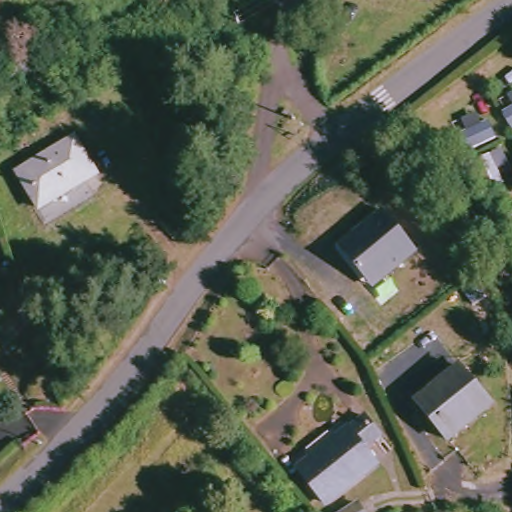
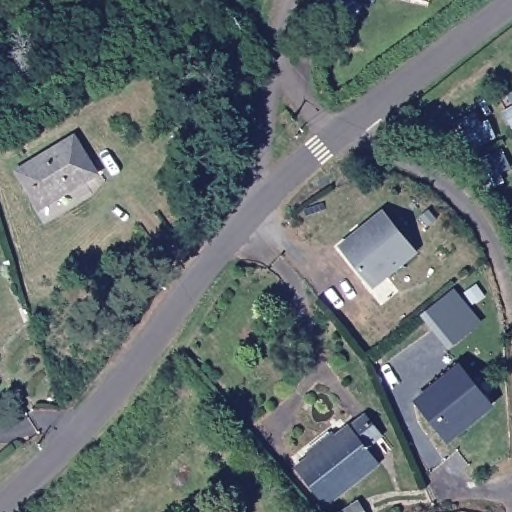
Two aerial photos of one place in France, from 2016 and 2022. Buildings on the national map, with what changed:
unchanged [(40,209),(18,173),(75,138),(97,174),(40,209)]
unchanged [(372,289),(338,245),(382,210),(416,254),(372,289)]
new [(453,290),(479,323),(453,343),(428,310),(453,290)]
unchanged [(450,443),(420,403),(462,368),(493,408),(450,443)]
unchanged [(380,461),(330,500),(302,464),(317,452),(320,454),(342,439),(338,434),(352,424),(355,424),(369,413),(383,432),(367,444),(380,461)]
unchanged [(361,504),(366,512),(348,512),(361,504)]

